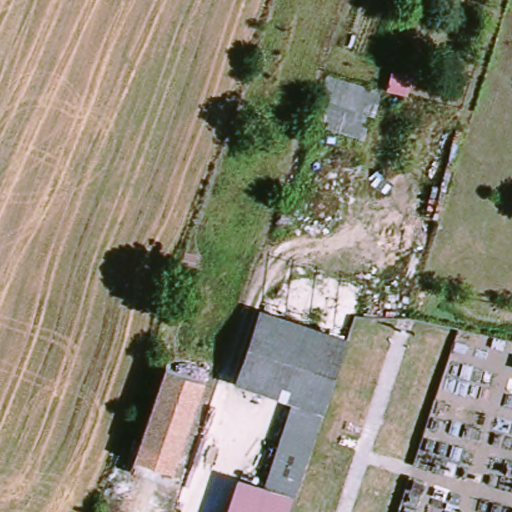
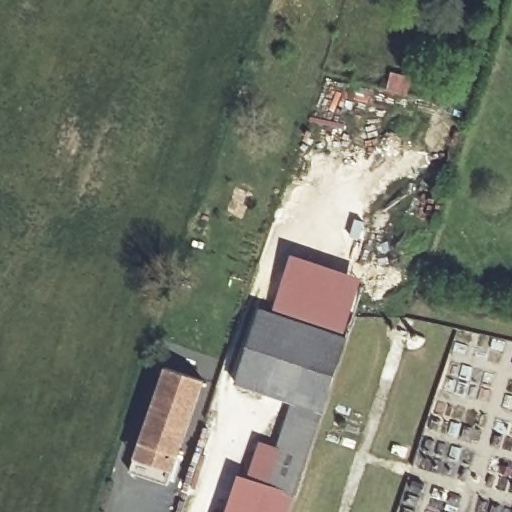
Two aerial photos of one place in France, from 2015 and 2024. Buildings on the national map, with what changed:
new [(340,338),(275,317),(297,257),(362,278),(340,338)]
unchanged [(232,387),(257,311),(345,340),(289,511),(257,500),(261,486),(288,406),(232,387)]
unchanged [(130,472),(165,371),(202,383),(167,484),(130,472)]
unchanged [(289,511),(288,512),(226,512),(237,477),(261,486),(257,500),(289,511)]

